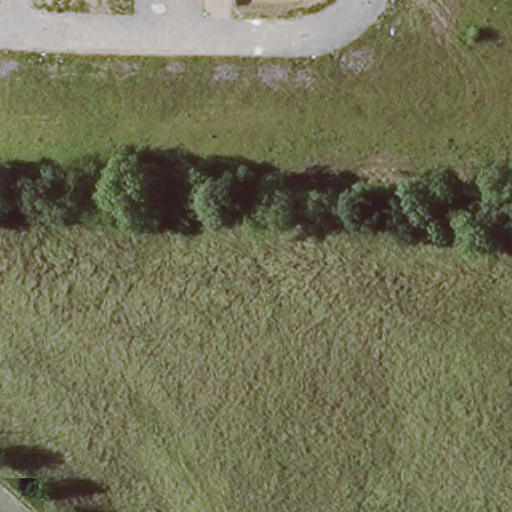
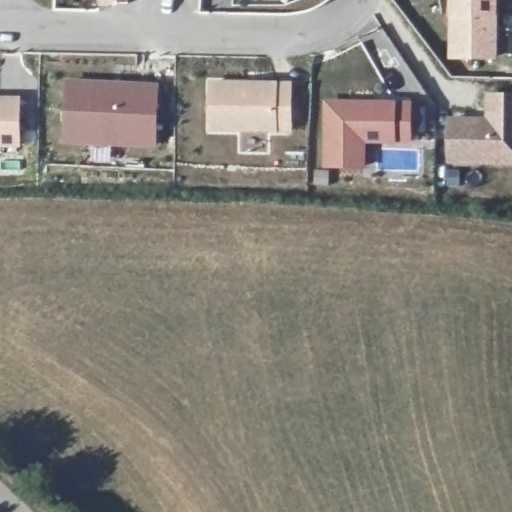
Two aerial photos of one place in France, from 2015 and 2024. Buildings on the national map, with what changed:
new [(449,60),(451,17),(451,0),(500,0),(500,17),(498,61),(449,60)]
unchanged [(160,84),(158,148),(63,144),(66,79),(160,84)]
new [(292,133),(209,132),(210,82),(293,83),(292,133)]
new [(486,117),(486,95),(512,95),(512,165),(448,165),(448,117),(486,117)]
new [(0,148),(0,97),(21,97),(21,148),(0,148)]
new [(411,147),(364,145),(363,170),(321,168),(325,100),(413,102),(411,147)]

